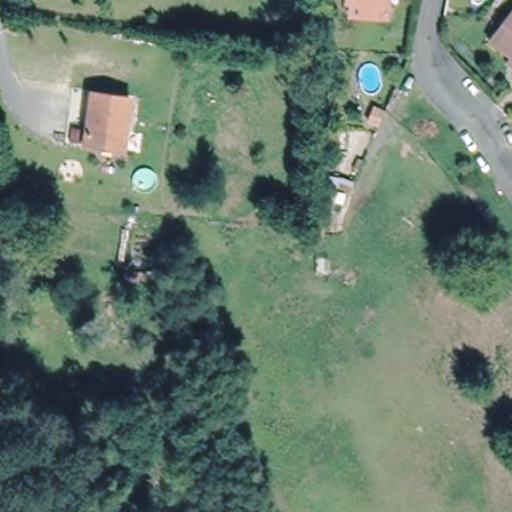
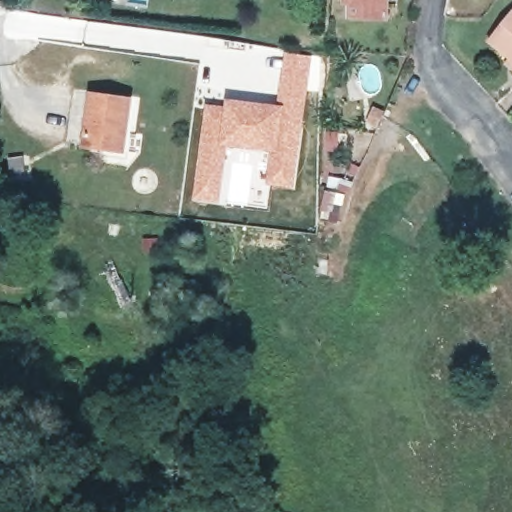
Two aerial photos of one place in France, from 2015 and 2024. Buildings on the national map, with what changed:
unchanged [(349,11),(350,0),(387,0),(386,15),(349,11)]
unchanged [(491,41),(512,15),(512,58),(491,41)]
new [(204,103),(223,105),(224,98),(276,104),(283,51),(312,55),(295,189),(266,185),(269,150),(228,149),(220,202),(192,199),(204,103)]
unchanged [(123,102),(117,149),(80,144),(87,97),(123,102)]

